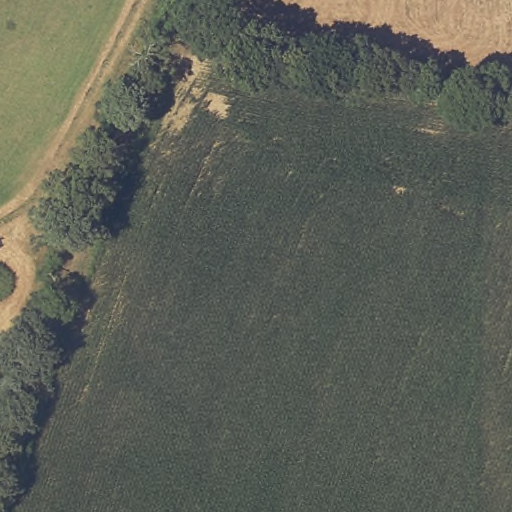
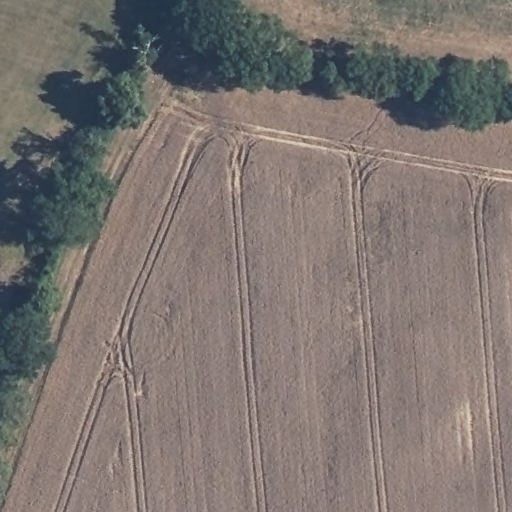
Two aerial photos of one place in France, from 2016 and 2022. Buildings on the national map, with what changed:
[]

